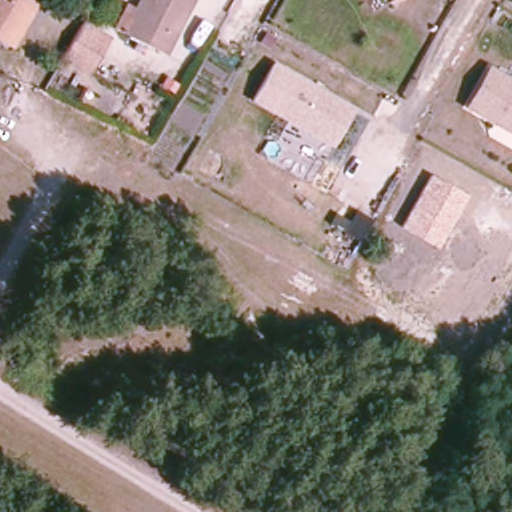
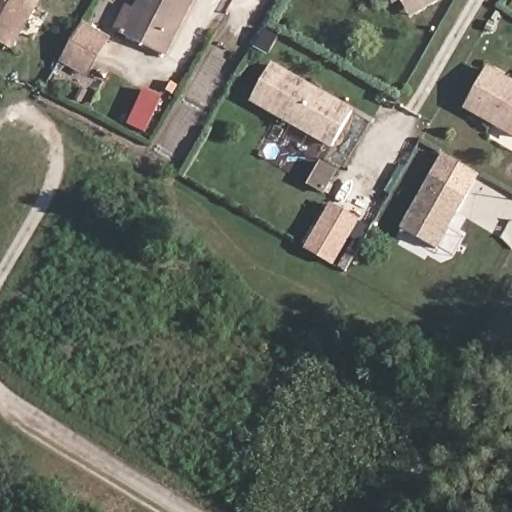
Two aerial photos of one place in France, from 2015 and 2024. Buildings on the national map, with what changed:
unchanged [(39,7),(15,50),(0,41),(0,0),(35,0),(34,2),(39,7)]
unchanged [(119,31),(136,0),(190,0),(160,55),(119,31)]
unchanged [(392,0),(401,0),(395,4),(392,0)]
unchanged [(84,79),(57,62),(81,20),(106,37),(84,79)]
unchanged [(334,147),(252,100),(274,62),(356,109),(334,147)]
unchanged [(506,130),(465,106),(487,69),(512,84),(512,134),(506,130)]
new [(146,131),(131,124),(147,92),(162,101),(146,131)]
unchanged [(440,248),(402,226),(431,175),(470,196),(440,248)]
new [(331,201),(362,219),(335,265),(305,248),(331,201)]

